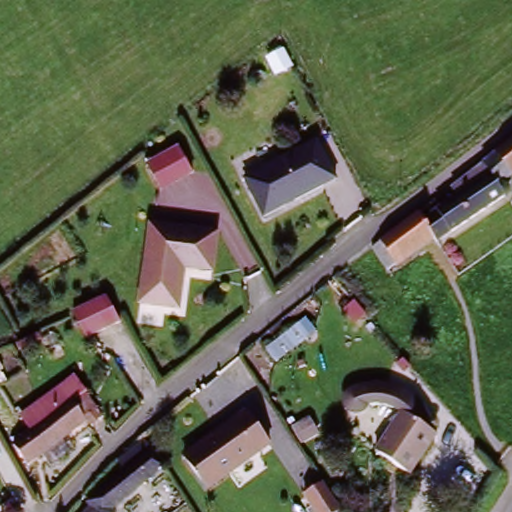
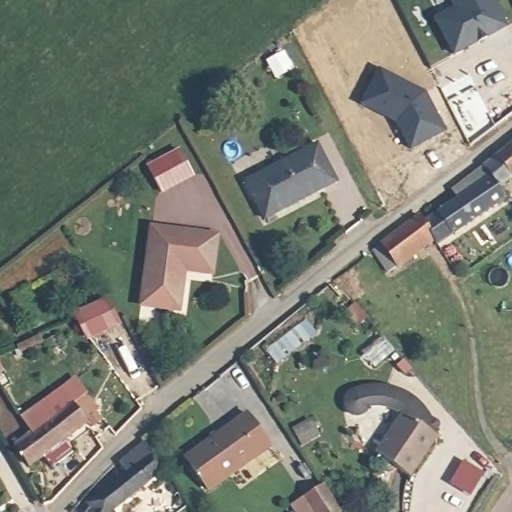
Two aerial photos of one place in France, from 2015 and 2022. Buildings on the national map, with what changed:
new [(450,15),(442,0),(483,0),(500,33),(448,61),(430,26),(450,15)]
new [(375,77),(418,100),(421,106),(417,108),(421,114),(425,112),(438,138),(405,155),(390,129),(357,111),(375,77)]
unchanged [(317,141),(337,180),(266,218),(247,178),(317,141)]
unchanged [(175,147),(190,172),(162,188),(147,163),(175,147)]
unchanged [(512,148),(512,181),(505,185),(490,163),(512,148)]
unchanged [(512,195),(446,241),(439,231),(433,222),(467,200),(457,186),(490,163),(505,185),(512,195)]
unchanged [(439,231),(388,264),(375,245),(426,211),(433,222),(439,231)]
unchanged [(150,225),(218,231),(214,273),(185,271),(181,307),(143,304),(150,225)]
unchanged [(325,335),(293,358),(285,344),(316,322),(325,335)]
unchanged [(385,387),(397,389),(408,393),(419,399),(438,429),(439,440),(407,416),(395,407),(374,405),(370,412),(362,418),(359,418),(353,416),(350,413),(346,408),(346,402),(347,397),(350,392),(355,389),(366,389),(373,388),(385,387)]
unchanged [(32,467),(15,443),(30,430),(20,418),(46,401),(60,411),(72,403),(91,427),(32,467)]
unchanged [(272,445),(213,486),(190,453),(250,412),(272,445)]
unchanged [(381,455),(407,416),(439,440),(412,478),(381,455)]
unchanged [(115,511),(116,512),(88,512),(93,507),(87,498),(147,443),(166,465),(115,511)]
unchanged [(324,479),(341,508),(334,512),(319,512),(305,490),(324,479)]

